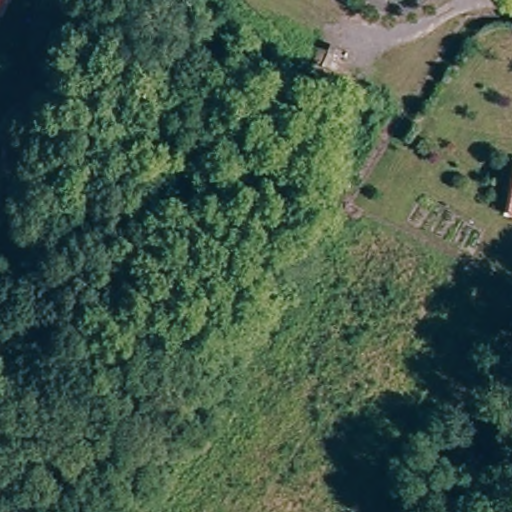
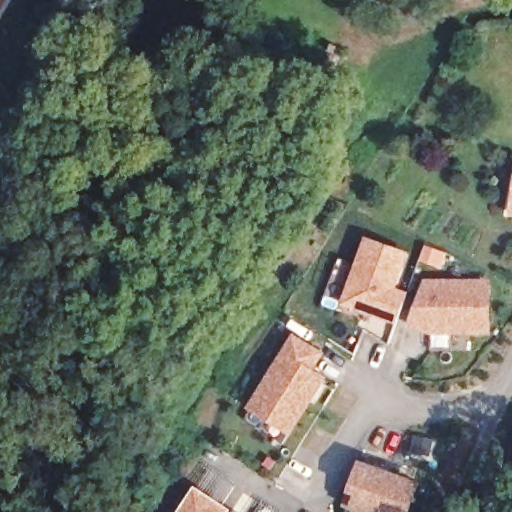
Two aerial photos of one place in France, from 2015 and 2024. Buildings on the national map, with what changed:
unchanged [(512,195),(512,214),(509,214),(512,195)]
new [(410,252),(399,287),(408,290),(397,325),(339,306),(346,281),(350,282),(364,236),(410,252)]
new [(493,334),(427,335),(407,328),(425,280),(492,280),(493,334)]
new [(325,352),(315,369),(327,377),(291,435),(248,408),(294,335),(325,352)]
new [(424,482),(414,512),(362,512),(343,506),(361,459),(424,482)]
new [(232,510),(231,512),(180,512),(196,486),(232,510)]

